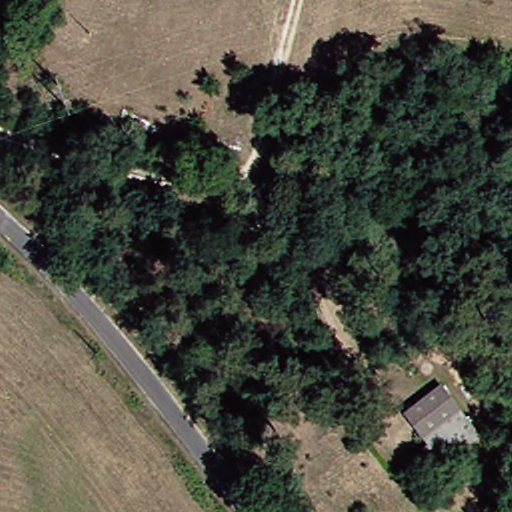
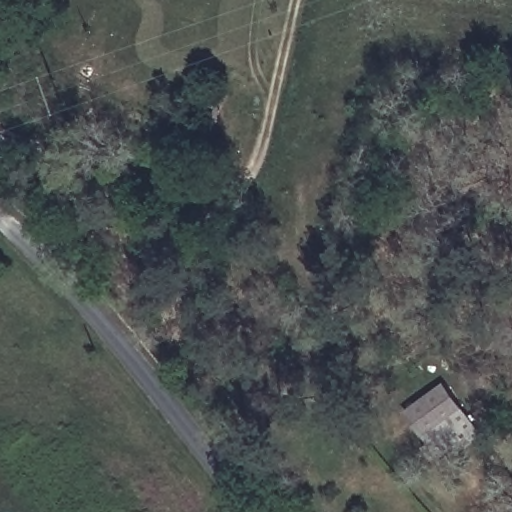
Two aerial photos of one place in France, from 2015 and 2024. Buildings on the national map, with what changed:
unchanged [(446,386),(488,438),(443,470),(401,419),(446,386)]

